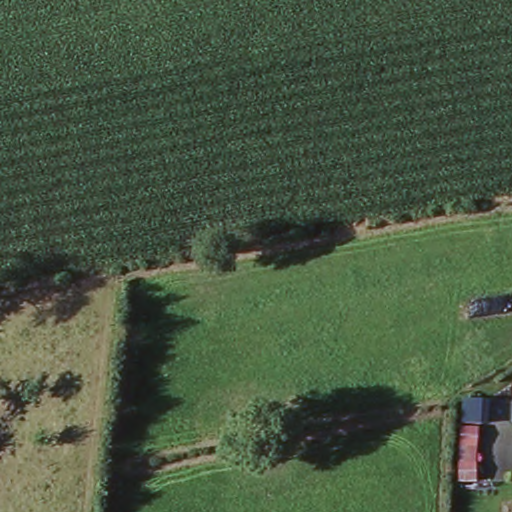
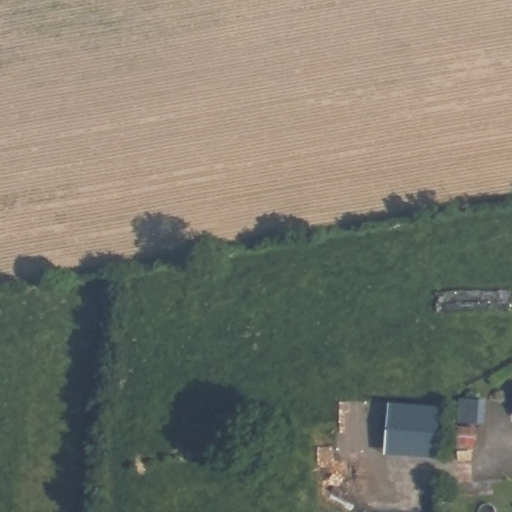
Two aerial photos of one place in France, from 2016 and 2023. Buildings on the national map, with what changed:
new [(442,408),(438,458),(387,455),(391,404),(442,408)]

